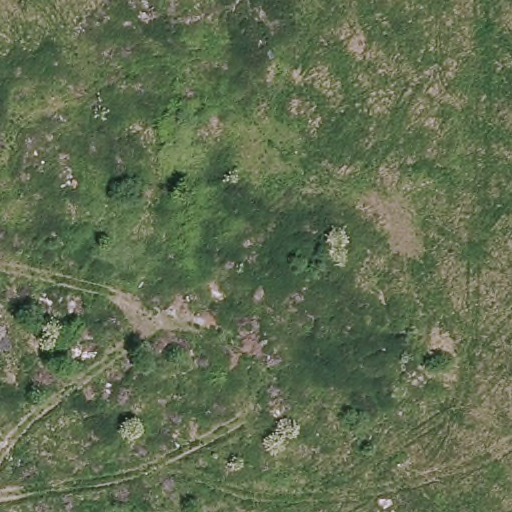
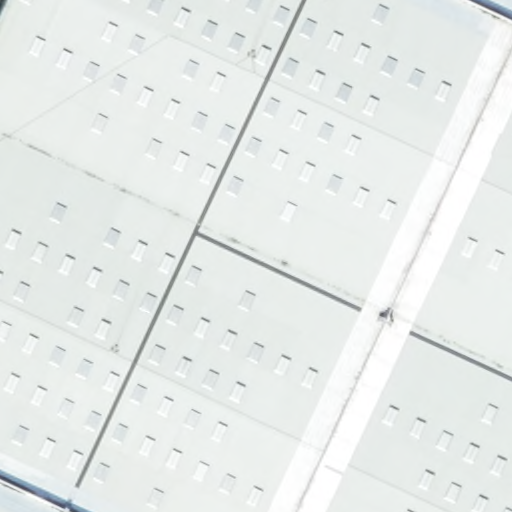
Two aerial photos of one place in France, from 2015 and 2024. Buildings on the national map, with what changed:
new [(512,512),(0,512),(0,0),(512,0),(512,512)]

